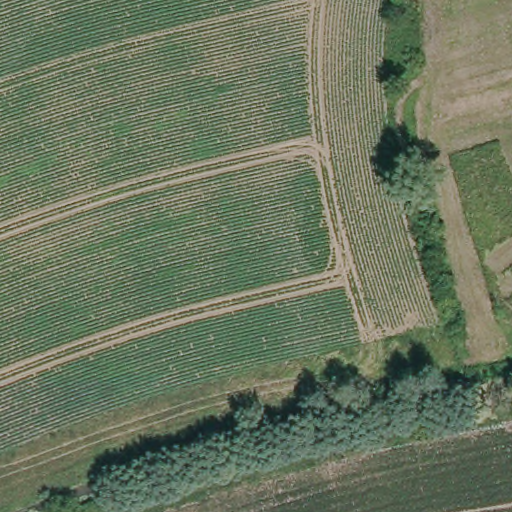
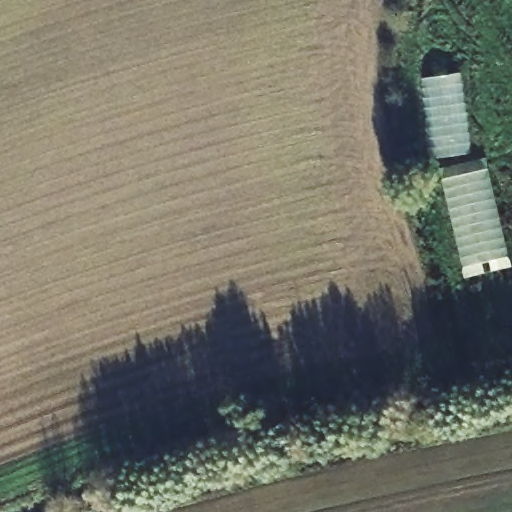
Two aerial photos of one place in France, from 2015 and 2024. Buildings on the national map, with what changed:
new [(472,154),(431,159),(420,79),(461,72),(472,154)]
new [(508,257),(465,266),(446,185),(450,178),(488,169),(508,257)]

